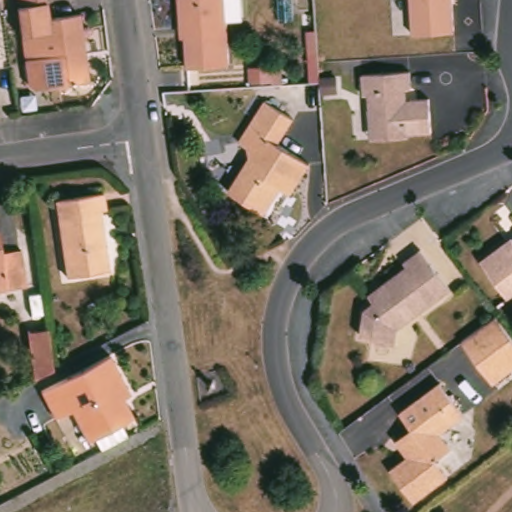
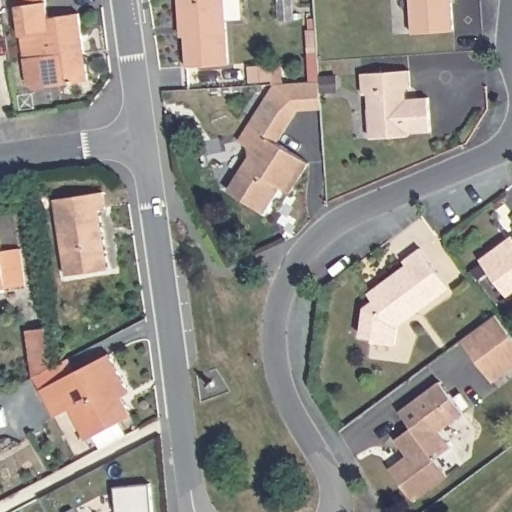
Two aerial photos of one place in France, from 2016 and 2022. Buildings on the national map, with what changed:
unchanged [(51,16),(80,12),(80,10),(83,9),(84,15),(82,15),(90,78),(35,86),(30,81),(20,0),(49,0),(51,16)]
unchanged [(232,62),(193,64),(190,28),(185,28),(183,0),(228,0),(232,62)]
unchanged [(456,29),(414,31),(412,0),(454,0),(456,29)]
unchanged [(259,78),(258,63),(278,61),(280,76),(259,78)]
unchanged [(367,96),(366,73),(412,69),(413,84),(406,89),(407,100),(431,98),(433,132),(384,136),(375,130),(373,96),(367,96)]
unchanged [(245,152),(237,147),(264,103),(293,121),(278,146),(311,167),(291,198),(279,190),(262,217),(229,196),(250,162),(245,152)]
unchanged [(107,188),(109,205),(99,206),(106,269),(65,273),(57,194),(107,188)]
unchanged [(24,269),(26,288),(0,291),(0,236),(2,252),(21,250),(24,269)]
unchanged [(512,294),(508,296),(481,260),(507,240),(512,246),(512,294)]
unchanged [(407,262),(404,258),(421,246),(451,286),(399,325),(398,344),(373,342),(374,336),(361,335),(363,308),(387,289),(381,282),(407,262)]
unchanged [(455,340),(489,314),(512,344),(512,363),(510,364),(487,382),(476,368),(455,340)]
unchanged [(40,323),(45,362),(26,372),(21,326),(40,323)]
unchanged [(114,352),(137,393),(126,399),(135,414),(90,439),(72,409),(60,416),(45,388),(114,352)]
unchanged [(400,410),(439,381),(466,418),(444,435),(452,446),(436,458),(448,474),(413,500),(391,471),(407,459),(412,427),(400,410)]
new [(116,484),(152,480),(156,512),(121,512),(119,509),(116,484)]

